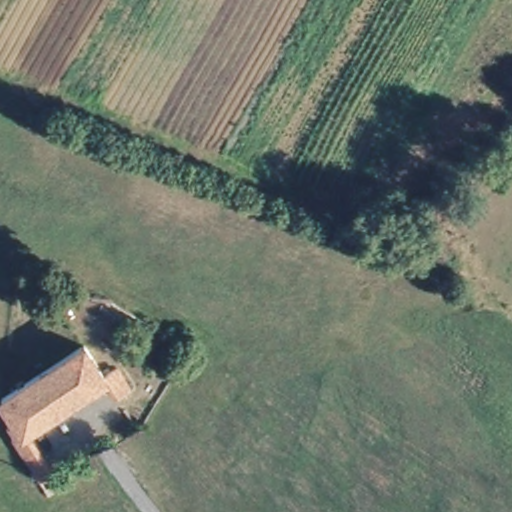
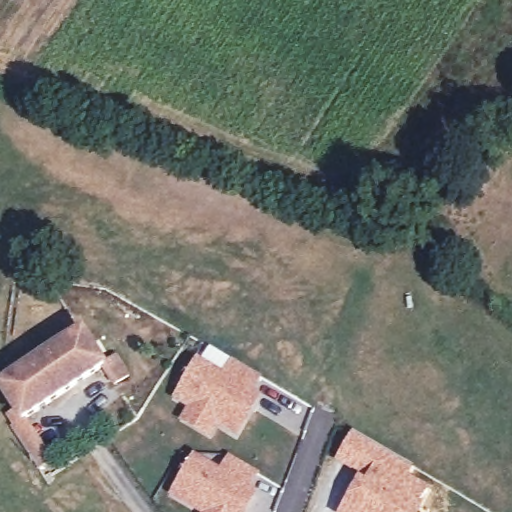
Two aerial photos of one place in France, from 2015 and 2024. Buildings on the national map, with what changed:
demolished [(34,432),(10,393),(63,357),(49,335),(84,312),(100,336),(91,342),(113,376),(34,432)]
new [(107,362),(117,355),(131,374),(113,385),(103,371),(29,420),(56,462),(40,471),(6,416),(13,413),(0,394),(0,383),(85,327),(107,362)]
new [(224,375),(232,361),(264,379),(256,392),(263,397),(239,440),(221,428),(213,440),(180,421),(188,409),(174,400),(198,356),(224,375)]
new [(416,469),(410,477),(432,491),(420,512),(338,512),(360,478),(336,462),(354,431),(416,469)]
new [(220,470),(229,455),(260,474),(253,488),(260,492),(248,512),(197,512),(170,496),(196,455),(220,470)]

